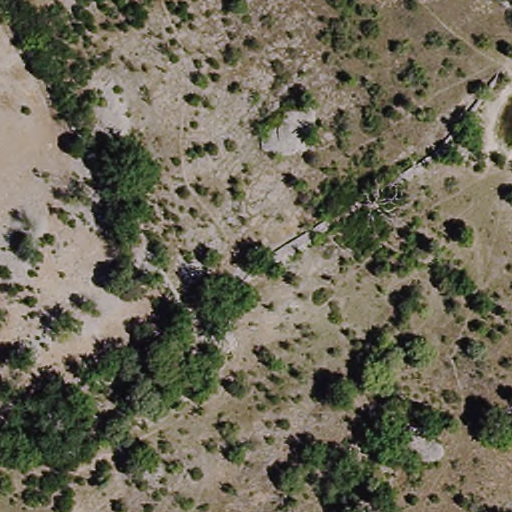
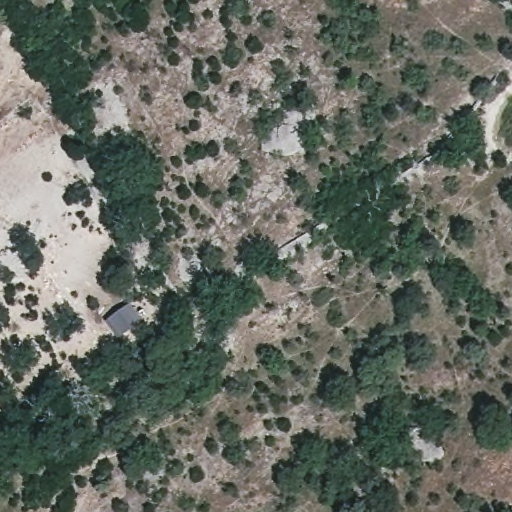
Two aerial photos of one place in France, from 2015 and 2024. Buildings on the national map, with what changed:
[]

